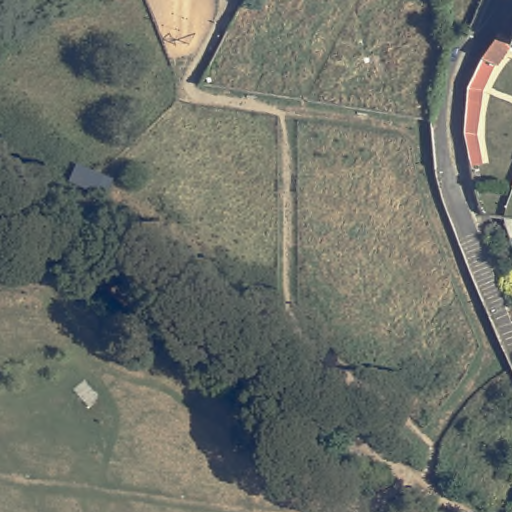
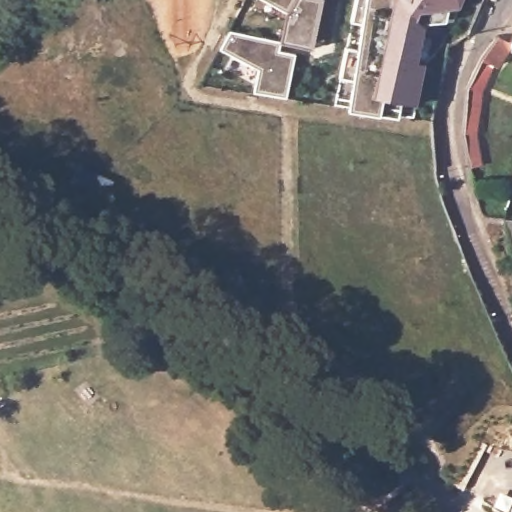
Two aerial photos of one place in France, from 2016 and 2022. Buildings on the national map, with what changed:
new [(311,46),(279,40),(277,48),(293,52),(285,98),(252,93),(257,68),(217,46),(226,29),(278,39),(283,11),(263,0),(320,0),(311,46)]
new [(352,77),(339,76),(346,44),(356,45),(360,23),(351,22),(356,0),(460,0),(457,6),(451,5),(448,19),(426,21),(417,57),(427,58),(418,104),(403,101),(400,115),(379,111),(377,114),(345,109),(352,77)]
unchanged [(500,71),(498,71),(485,95),(481,139),(466,138),(466,134),(466,129),(466,126),(467,120),(467,117),(468,114),(468,112),(468,107),(468,106),(468,101),(470,97),(470,95),(470,92),(471,87),(472,86),(473,84),(475,81),(477,78),(477,76),(478,75),(480,71),(481,67),(482,64),(484,61),(485,60),(486,59),(486,58),(488,55),(489,54),(491,50),(492,49),(493,47),(495,45),(495,43),(496,42),(499,40),(512,45),(512,53),(500,71)]
unchanged [(431,512),(419,512),(424,507),(431,512)]
unchanged [(415,512),(407,512),(411,508),(415,512)]

